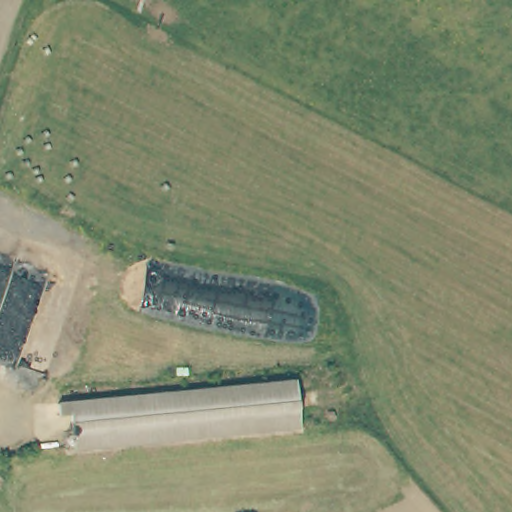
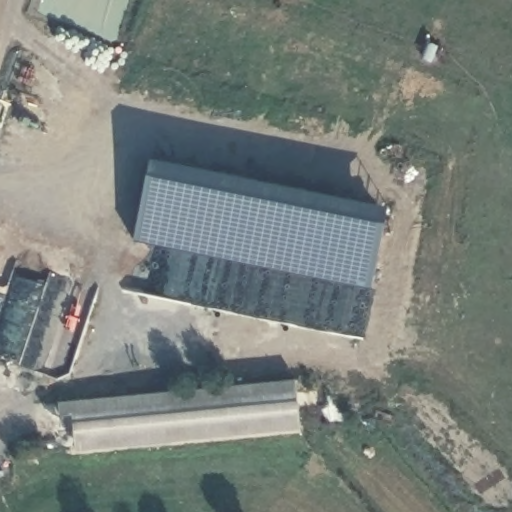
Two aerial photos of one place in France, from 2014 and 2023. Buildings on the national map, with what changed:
new [(149,156),(389,205),(370,286),(132,240),(149,156)]
unchanged [(296,375),(301,423),(76,445),(73,413),(59,414),(58,400),(296,375)]

